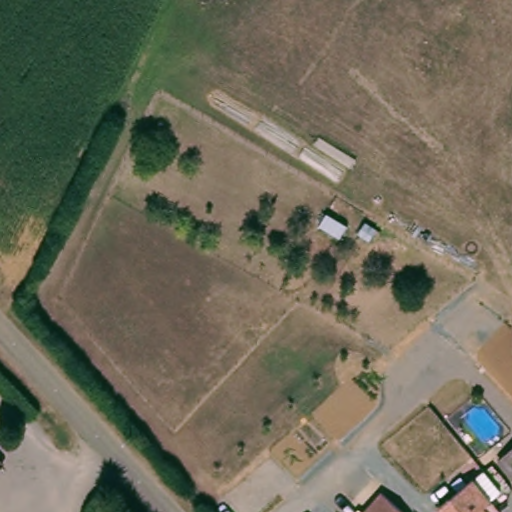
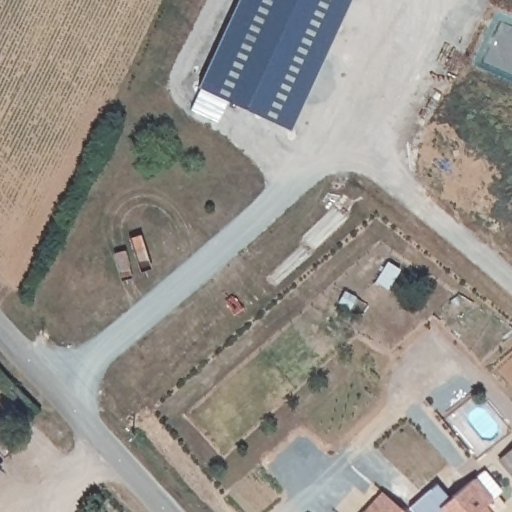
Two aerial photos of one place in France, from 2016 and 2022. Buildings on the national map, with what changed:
new [(289,129),(197,87),(238,0),(349,0),(289,129)]
unchanged [(512,478),(498,462),(512,451),(512,478)]
unchanged [(472,484),(483,475),(499,495),(489,504),(481,511),(481,512),(436,512),(471,483),(472,484)]
unchanged [(409,512),(362,512),(384,488),(409,512)]

